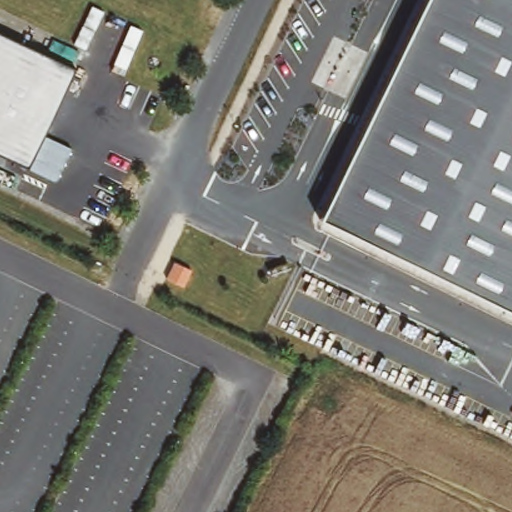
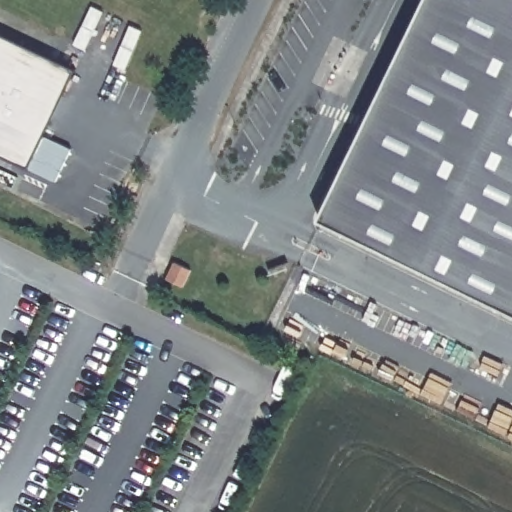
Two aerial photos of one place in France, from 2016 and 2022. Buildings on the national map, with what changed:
unchanged [(319,219),(427,0),(512,0),(512,311),(319,219)]
unchanged [(27,166),(0,153),(0,35),(73,70),(27,166)]
unchanged [(180,285),(161,274),(170,254),(189,265),(180,285)]

